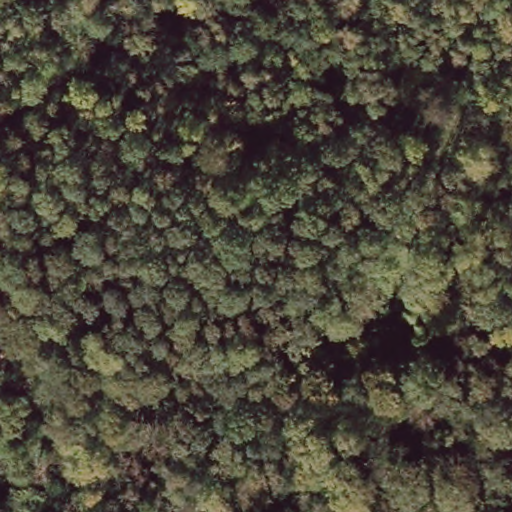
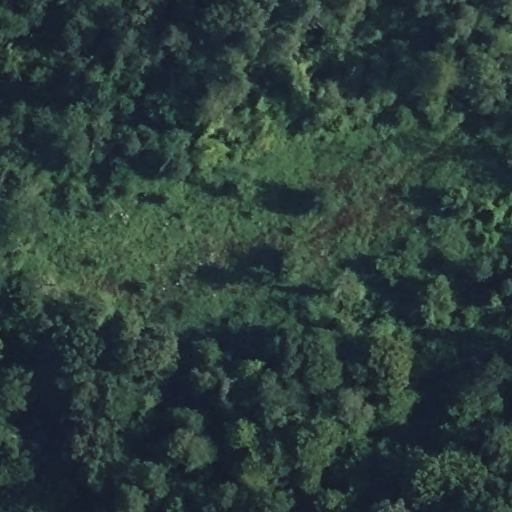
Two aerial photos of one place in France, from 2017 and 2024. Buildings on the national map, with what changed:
unchanged [(481,134),(508,152),(460,222),(434,204),(481,134)]
unchanged [(91,412),(95,422),(83,428),(78,417),(91,412)]

